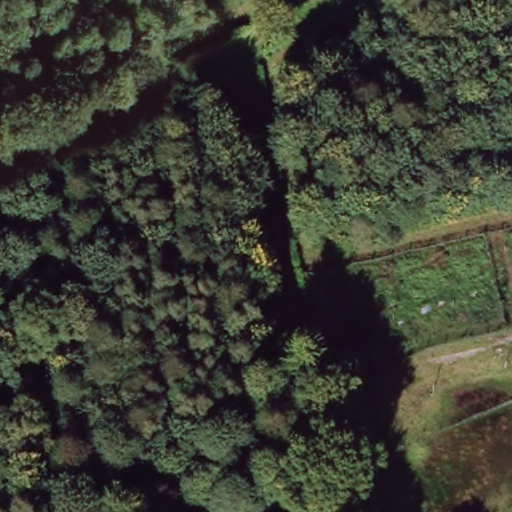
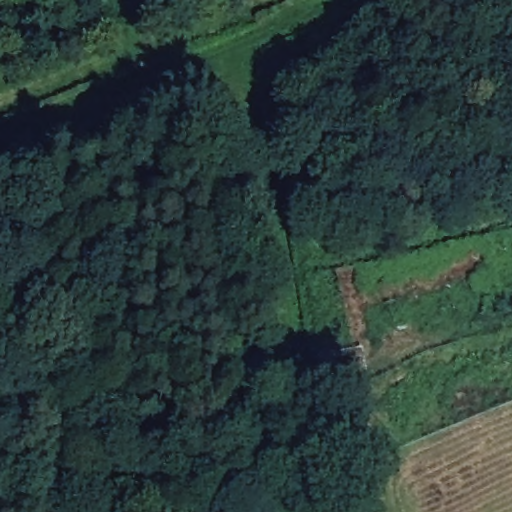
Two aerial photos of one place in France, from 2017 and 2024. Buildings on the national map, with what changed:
unchanged [(363,362),(367,408),(327,412),(323,365),(363,362)]

